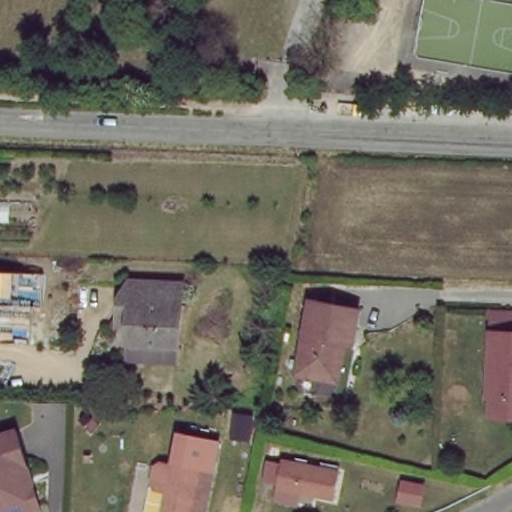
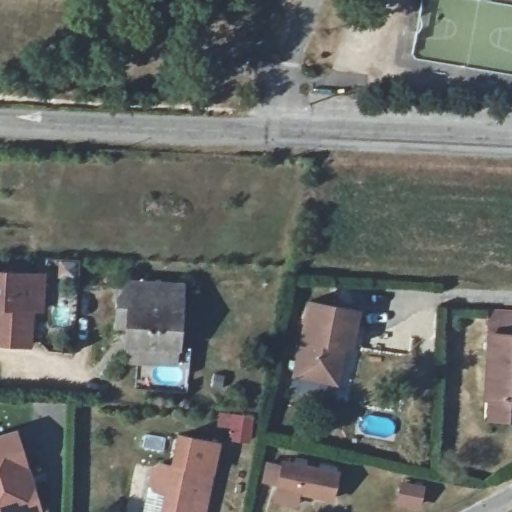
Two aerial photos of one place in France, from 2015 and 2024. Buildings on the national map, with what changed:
new [(50,301),(41,300),(38,337),(0,335),(0,326),(2,298),(0,298),(0,265),(52,267),(50,301)]
unchanged [(125,302),(135,303),(136,301),(141,301),(141,283),(186,285),(185,338),(134,335),(135,322),(124,321),(125,302)]
unchanged [(323,380),(298,375),(314,305),(361,315),(352,352),(345,349),(339,377),(338,383),(323,380)]
unchanged [(487,397),(490,337),(512,337),(512,398),(487,397)]
unchanged [(38,508),(27,512),(0,512),(0,434),(12,431),(38,508)]
unchanged [(170,461),(177,432),(217,442),(209,468),(170,461)]
unchanged [(341,471),(336,502),(276,490),(283,458),(341,471)]
unchanged [(201,512),(160,512),(164,492),(152,489),(148,483),(151,467),(157,463),(169,466),(170,461),(209,468),(201,512)]

